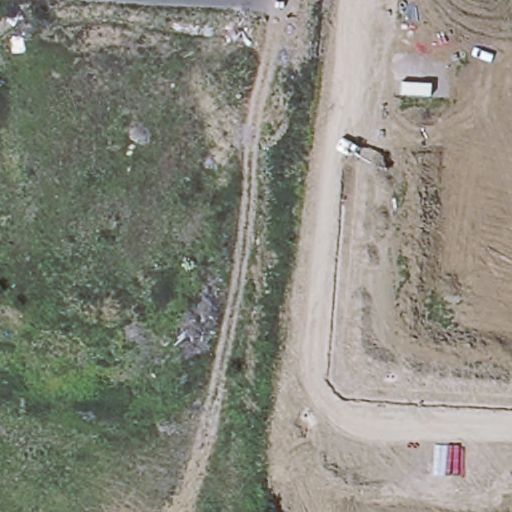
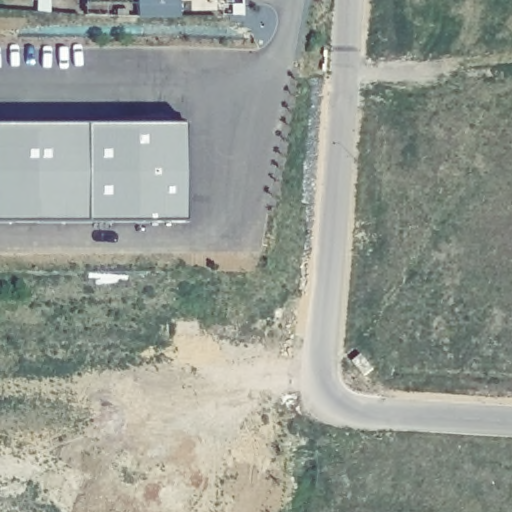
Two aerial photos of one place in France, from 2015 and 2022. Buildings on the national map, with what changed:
new [(189,217),(0,219),(0,123),(189,121),(189,217)]
new [(365,357),(377,371),(370,378),(357,364),(365,357)]

